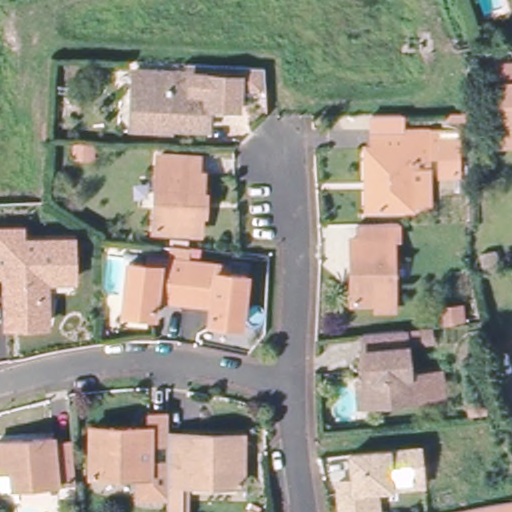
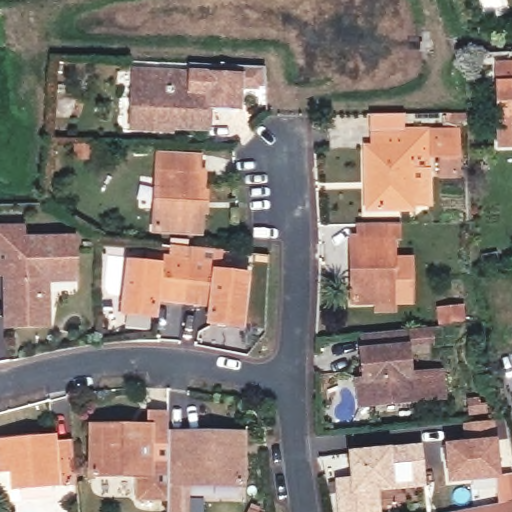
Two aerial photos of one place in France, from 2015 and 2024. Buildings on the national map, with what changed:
unchanged [(512,59),(512,139),(502,140),(501,116),(506,116),(505,81),(500,80),(500,60),(512,59)]
unchanged [(264,84),(265,89),(258,89),(237,87),(236,107),(206,106),(205,128),(167,127),(167,130),(131,129),(133,74),(190,77),(191,65),(208,66),(264,69),(264,84)]
unchanged [(372,186),(371,149),(375,149),(375,134),(375,133),(376,116),(408,116),(408,134),(433,134),(433,175),(433,207),(419,207),(419,212),(383,212),(372,211),(372,186)]
unchanged [(444,175),(444,159),(438,159),(437,134),(463,134),(462,159),(462,176),(444,175)]
unchanged [(95,142),(95,158),(76,157),(76,141),(95,142)]
unchanged [(204,212),(198,212),(197,231),(154,229),(158,157),(197,160),(197,174),(201,174),(199,192),(205,192),(204,212)]
unchanged [(376,303),(376,295),(353,296),(352,232),(360,232),(360,217),(399,217),(399,232),(393,232),(394,295),(394,303),(376,303)]
unchanged [(3,312),(1,258),(0,258),(0,225),(10,225),(9,235),(69,234),(69,285),(33,285),(33,312),(33,323),(3,323),(3,312)]
unchanged [(123,313),(124,307),(130,263),(151,266),(152,258),(161,260),(191,262),(186,301),(168,299),(159,298),(157,311),(156,317),(123,313)]
unchanged [(210,317),(212,303),(202,302),(186,301),(191,262),(220,266),(231,267),(230,275),(248,276),(243,320),(243,327),(210,323),(210,317)]
unchanged [(457,325),(437,327),(436,313),(455,312),(457,325)]
unchanged [(351,382),(360,381),(358,337),(400,333),(430,330),(432,341),(402,343),(405,380),(424,378),(427,400),(362,404),(353,405),(351,382)]
unchanged [(170,435),(170,499),(142,498),(143,476),(94,475),(94,429),(149,431),(150,417),(170,418),(170,435)]
new [(501,478),(448,484),(445,442),(466,441),(463,424),(494,421),(496,438),(501,478)]
unchanged [(0,498),(0,438),(44,433),(44,437),(63,435),(68,478),(5,485),(7,499),(2,500),(0,498)]
unchanged [(170,435),(202,436),(224,437),(245,437),(245,486),(187,484),(187,512),(170,512),(170,499),(170,435)]
unchanged [(341,485),(355,483),(353,457),(423,451),(428,487),(378,492),(380,512),(344,512),(341,485)]
new [(512,500),(512,512),(453,512),(512,500)]

